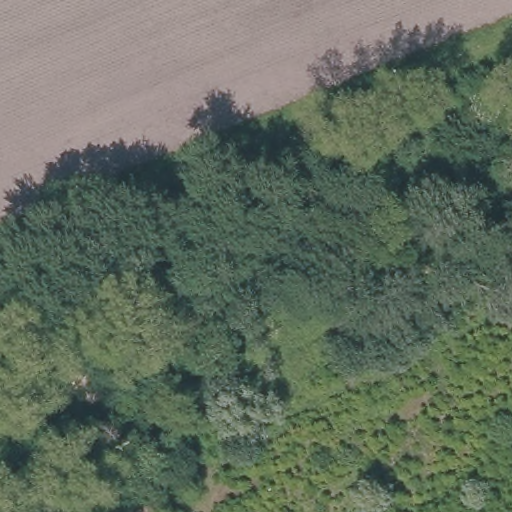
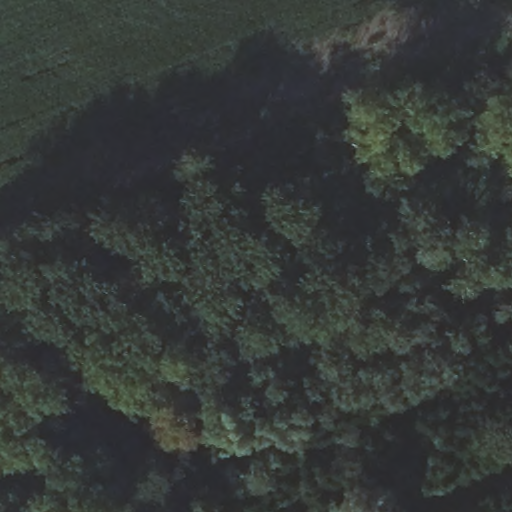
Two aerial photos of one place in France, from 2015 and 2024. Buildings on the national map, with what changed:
[]

